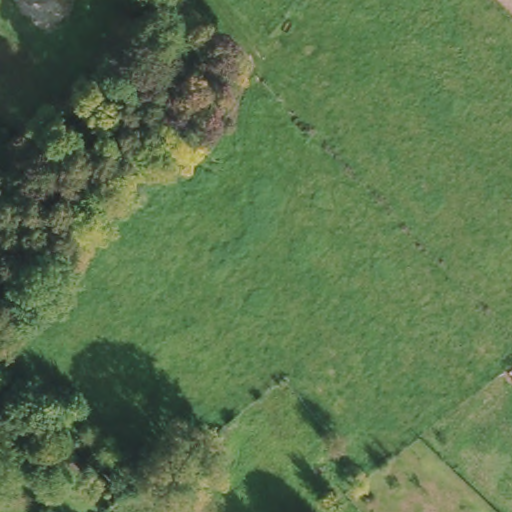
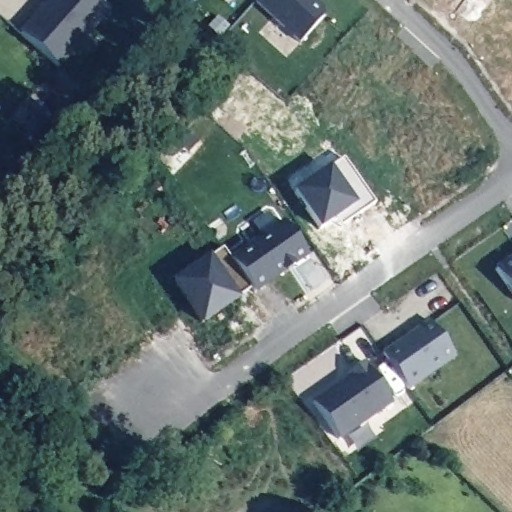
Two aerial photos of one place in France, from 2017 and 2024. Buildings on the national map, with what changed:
new [(95,0),(107,10),(55,67),(18,34),(49,0),(95,0)]
new [(298,45),(254,7),(260,0),(311,0),(322,9),(322,19),(298,45)]
new [(331,169),(342,159),(374,204),(340,228),(335,220),(317,230),(292,192),(330,167),(331,169)]
new [(282,220),(306,254),(252,290),(229,257),(282,220)]
new [(229,257),(252,289),(238,298),(240,300),(200,327),(170,284),(208,257),(210,258),(222,249),(229,257)]
new [(512,257),(512,295),(495,269),(512,257)]
new [(428,319),(455,354),(407,390),(381,353),(428,319)]
new [(364,364),(390,401),(338,439),(311,404),(364,364)]

